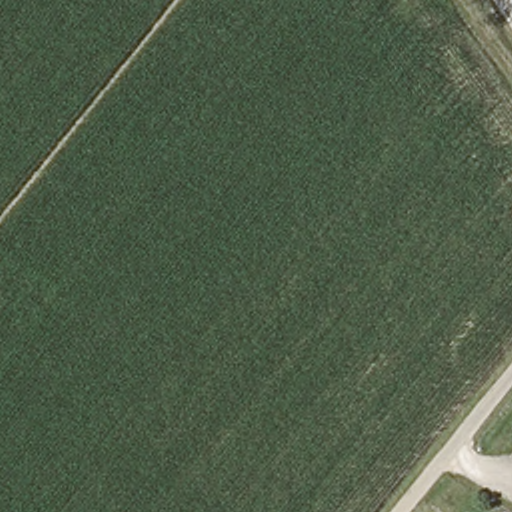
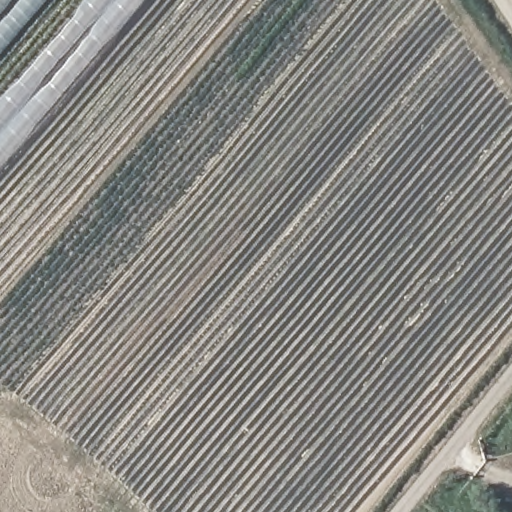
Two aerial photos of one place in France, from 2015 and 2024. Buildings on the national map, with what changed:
new [(48,0),(0,56),(0,0),(48,0)]
new [(84,0),(145,0),(0,164),(0,96),(84,0)]

